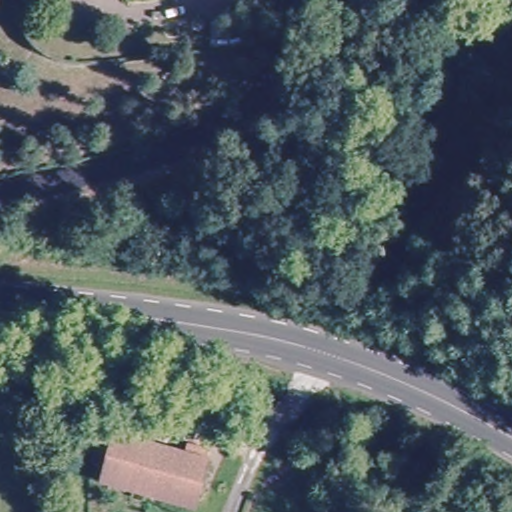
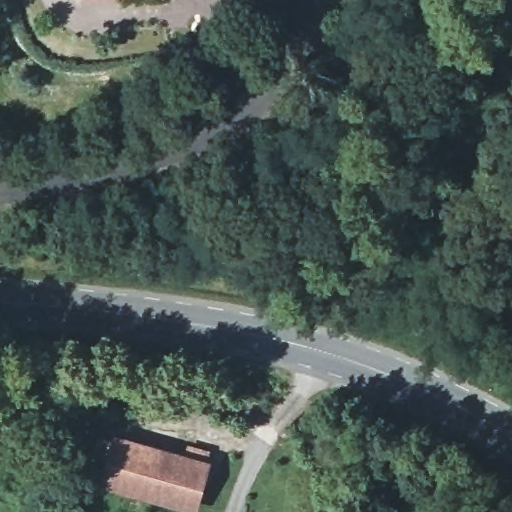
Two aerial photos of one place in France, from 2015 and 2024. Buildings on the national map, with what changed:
unchanged [(184,465),(191,447),(211,455),(188,511),(103,479),(111,460),(99,455),(109,435),(184,465)]

